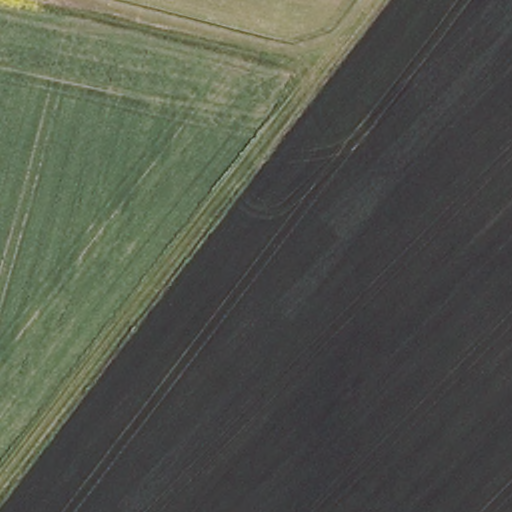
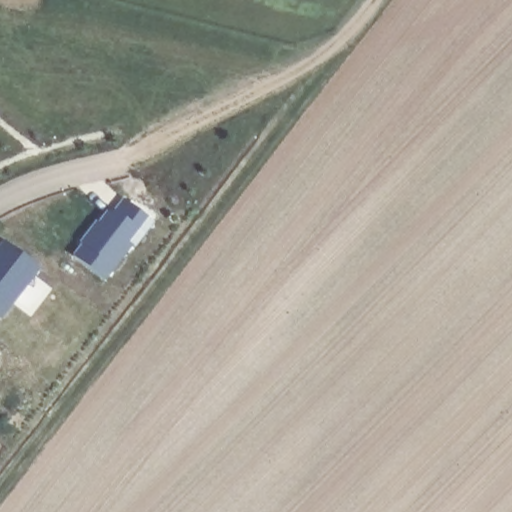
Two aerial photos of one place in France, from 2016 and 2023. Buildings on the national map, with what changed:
new [(79,244),(77,242),(88,226),(90,228),(104,211),(111,210),(120,197),(149,220),(131,245),(128,243),(101,280),(69,255),(79,244)]
new [(4,241),(39,268),(0,318),(0,246),(4,241)]

